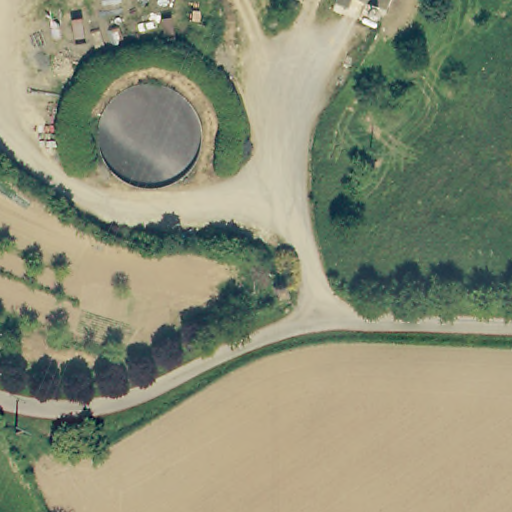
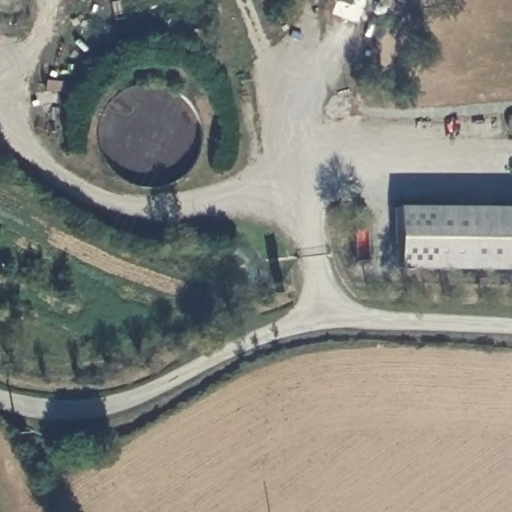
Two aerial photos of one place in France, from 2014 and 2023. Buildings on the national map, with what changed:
unchanged [(351,12),(341,7),(343,0),(393,0),(388,12),(356,1),(351,12)]
new [(512,270),(396,268),(397,206),(512,207),(512,270)]

